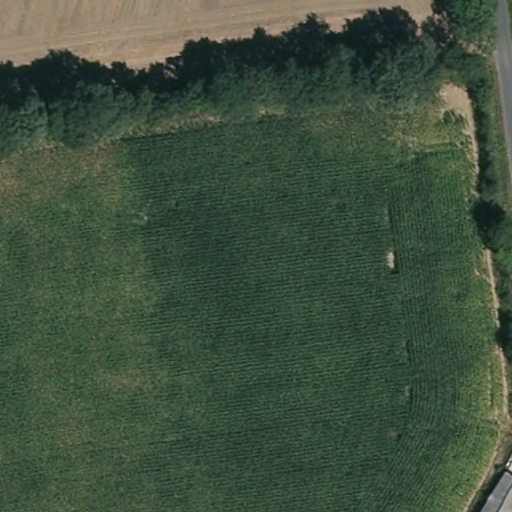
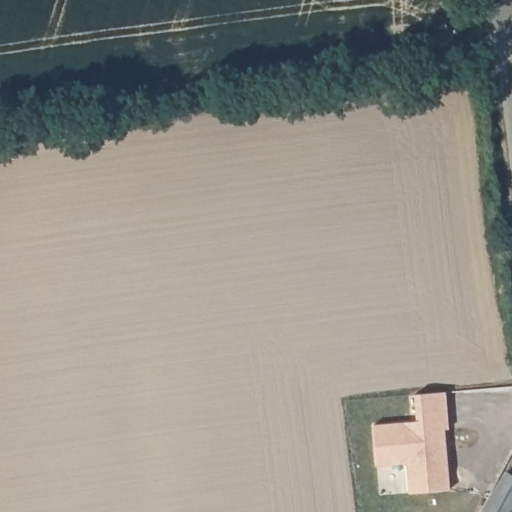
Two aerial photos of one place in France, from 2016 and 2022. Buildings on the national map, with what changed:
new [(409,491),(408,463),(376,465),(374,425),(417,421),(415,395),(446,391),(449,427),(445,427),(451,489),(409,491)]
unchanged [(512,475),(512,512),(483,512),(507,472),(512,475)]

